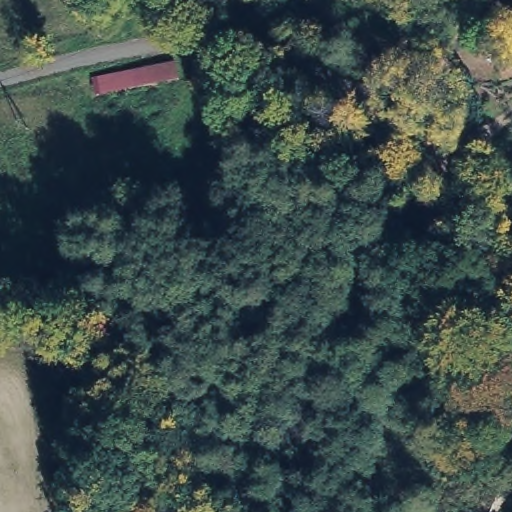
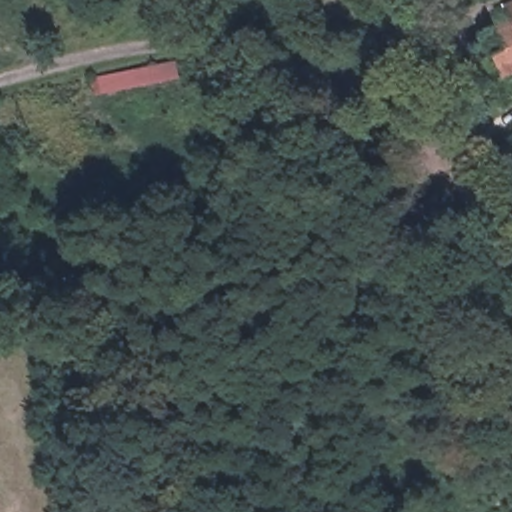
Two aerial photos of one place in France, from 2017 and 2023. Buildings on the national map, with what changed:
unchanged [(512,23),(505,8),(512,5),(512,23)]
unchanged [(175,62),(178,79),(97,96),(93,78),(175,62)]

